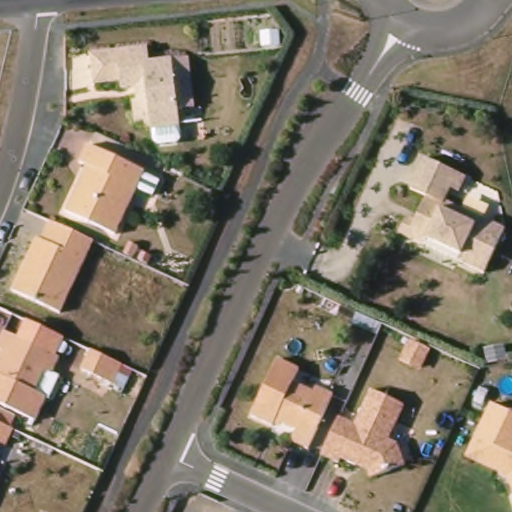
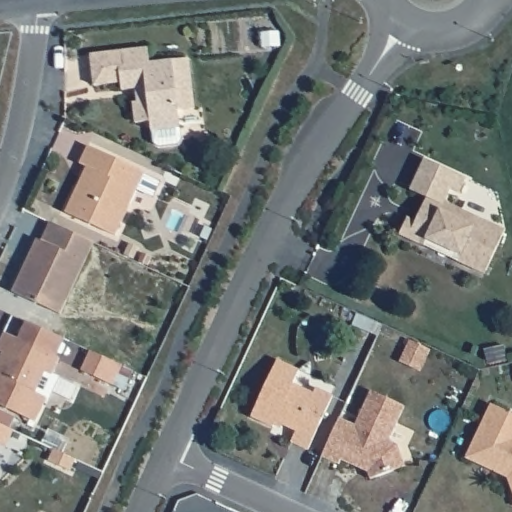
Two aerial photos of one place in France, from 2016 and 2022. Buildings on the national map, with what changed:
unchanged [(154,57),(193,53),(199,102),(182,105),(184,122),(156,126),(155,116),(140,118),(137,98),(152,96),(150,81),(126,85),(125,77),(98,80),(94,49),(152,42),(154,57)]
unchanged [(91,140),(147,167),(119,230),(69,207),(79,185),(90,161),(83,159),(91,140)]
unchanged [(403,229),(412,211),(420,215),(431,192),(414,185),(429,154),(461,169),(449,196),(509,225),(489,268),(471,260),(429,240),(403,229)]
unchanged [(97,242),(64,314),(16,291),(31,258),(40,239),(45,241),(54,222),(62,226),(97,242)]
unchanged [(55,370),(49,367),(39,388),(50,393),(39,417),(0,400),(0,371),(1,371),(11,350),(0,345),(0,344),(8,328),(63,353),(55,370)]
unchanged [(126,365),(116,385),(85,370),(94,351),(126,365)]
unchanged [(298,382),(319,392),(322,386),(338,393),(313,448),(297,440),(302,430),(281,420),(278,425),(257,415),(283,358),(305,368),(298,382)]
unchanged [(347,457),(344,462),(327,454),(344,416),(361,424),(377,389),(410,404),(394,439),(403,443),(411,465),(376,477),(374,470),(361,464),(347,457)]
unchanged [(479,436),(496,400),(512,408),(512,471),(472,452),(479,436)]

